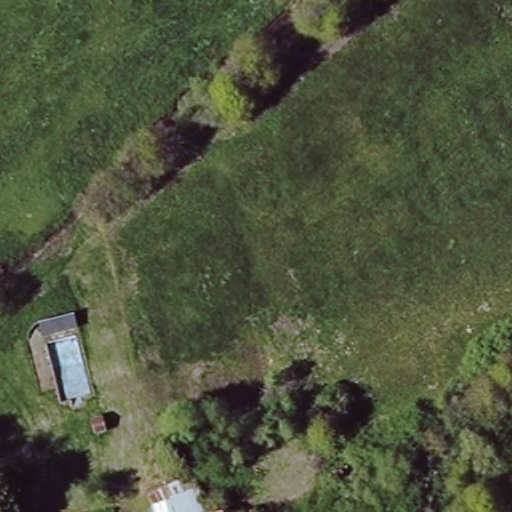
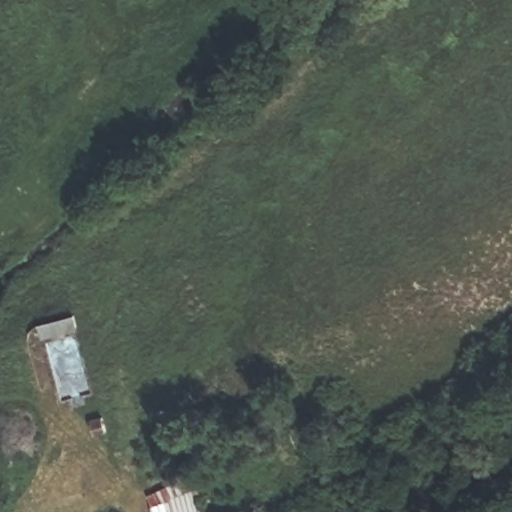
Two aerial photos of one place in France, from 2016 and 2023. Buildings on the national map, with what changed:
unchanged [(143,495),(188,475),(203,512),(149,512),(143,495)]
unchanged [(235,511),(236,512),(229,512),(235,511)]

